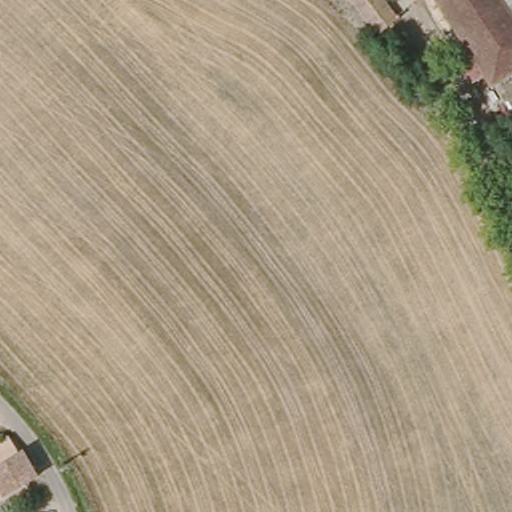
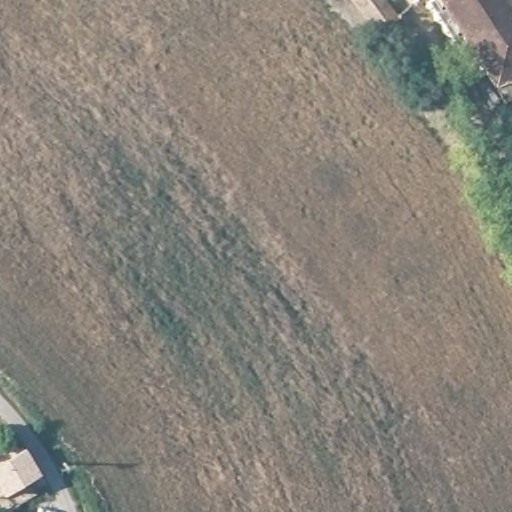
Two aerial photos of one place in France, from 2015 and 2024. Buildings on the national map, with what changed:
unchanged [(385,29),(363,0),(392,0),(404,15),(385,29)]
unchanged [(507,0),(512,7),(512,67),(494,79),(481,88),(475,78),(487,69),(442,0),(507,0)]
unchanged [(512,0),(512,7),(507,0),(512,0)]
unchanged [(42,475),(12,494),(0,474),(0,445),(13,437),(22,452),(27,449),(42,475)]

